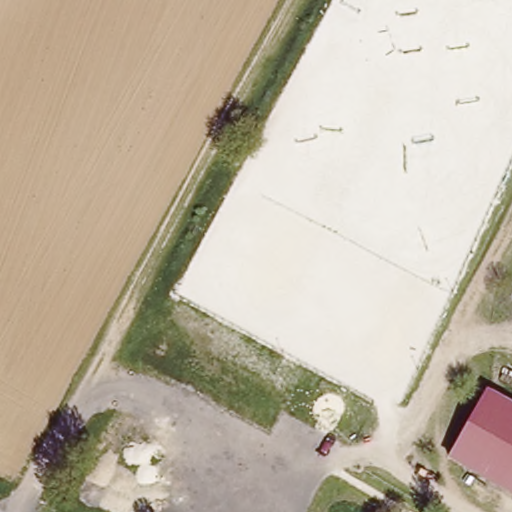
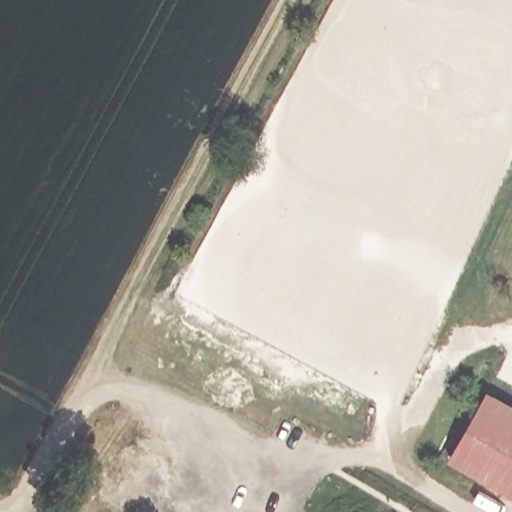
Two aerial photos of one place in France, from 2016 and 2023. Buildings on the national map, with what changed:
unchanged [(512,402),(512,491),(452,456),(490,389),(512,402)]

